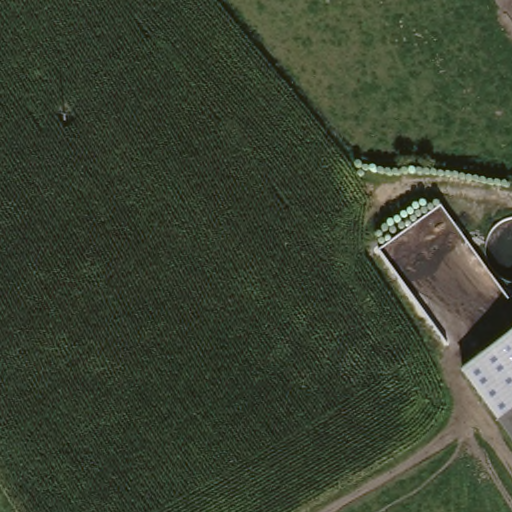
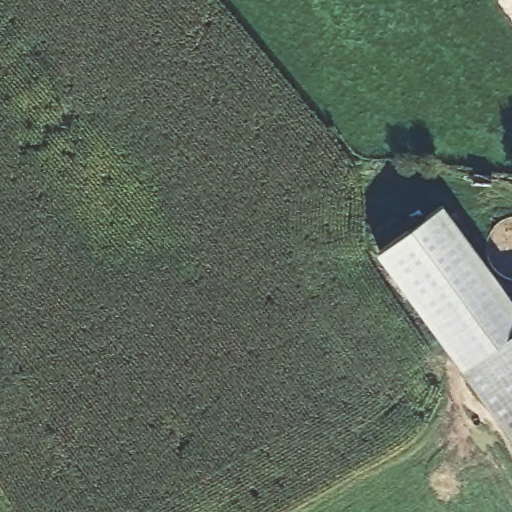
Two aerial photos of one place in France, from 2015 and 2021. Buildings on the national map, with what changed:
new [(378,253),(444,204),(512,296),(512,333),(463,370),(378,253)]
unchanged [(463,370),(512,333),(512,438),(463,370)]

